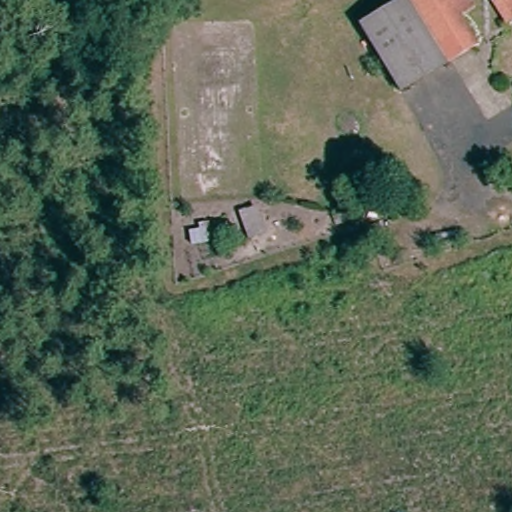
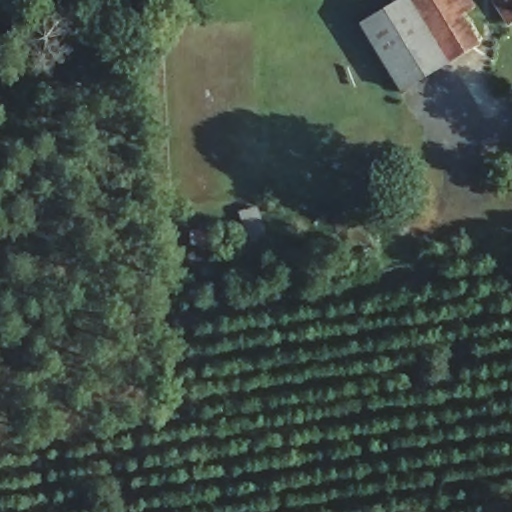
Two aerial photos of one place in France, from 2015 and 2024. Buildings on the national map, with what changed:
unchanged [(408,0),(464,0),(471,12),(459,20),(476,48),(444,67),(405,2),(408,0)]
unchanged [(494,6),(504,0),(512,0),(512,26),(508,28),(494,6)]
unchanged [(446,70),(399,99),(357,31),(405,2),(444,67),(446,70)]

